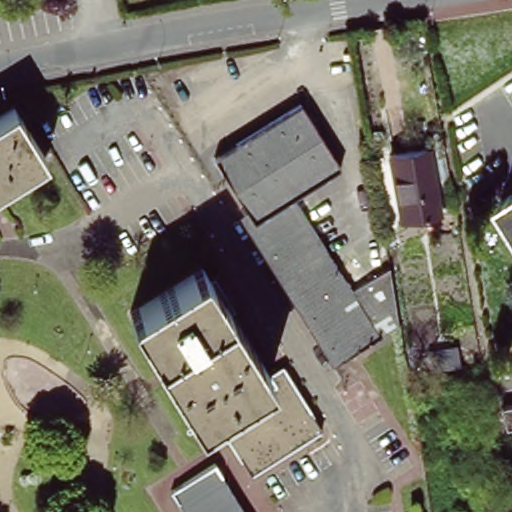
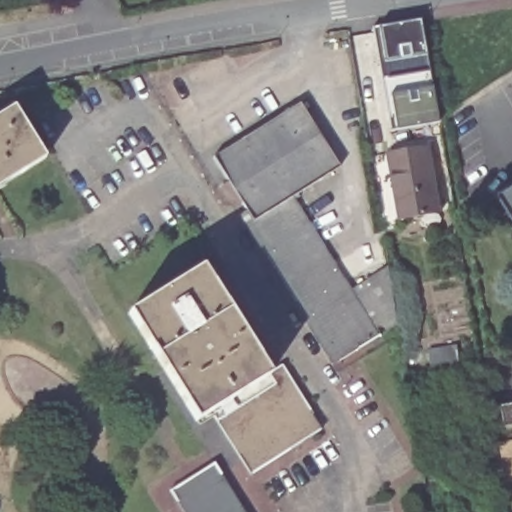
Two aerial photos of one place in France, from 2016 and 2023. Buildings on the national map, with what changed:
new [(422,17),(431,68),(382,77),(372,24),(422,17)]
new [(431,68),(441,121),(392,130),(382,77),(431,68)]
unchanged [(297,196),(301,201),(296,203),(348,289),(349,290),(373,331),(376,328),(379,335),(381,337),(340,362),(277,258),(213,157),(301,105),(340,169),(297,196)]
unchanged [(15,111),(46,162),(0,190),(0,120),(15,111)]
unchanged [(419,217),(396,220),(386,156),(425,151),(434,207),(436,216),(419,217)]
unchanged [(512,194),(512,221),(500,202),(512,194)]
unchanged [(349,290),(388,266),(414,311),(381,337),(379,335),(376,328),(373,331),(349,290)]
unchanged [(197,277),(263,385),(208,418),(192,427),(126,319),(197,277)]
unchanged [(263,385),(277,377),(314,439),(247,481),(208,418),(263,385)]
unchanged [(508,426),(504,405),(512,403),(512,425),(508,426)]
unchanged [(244,512),(183,512),(170,491),(215,464),(244,512)]

